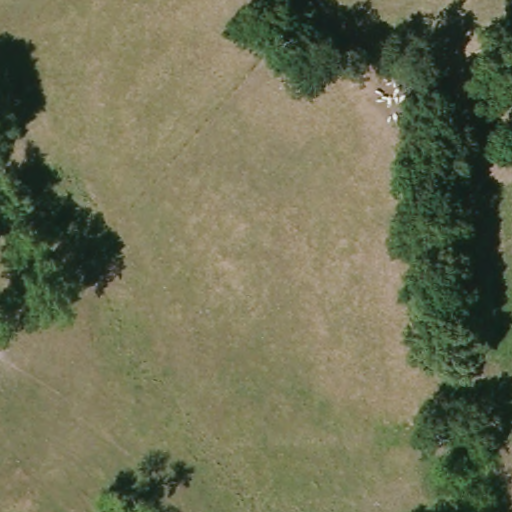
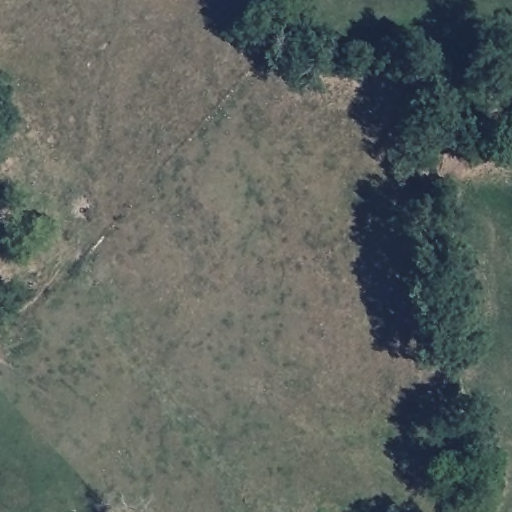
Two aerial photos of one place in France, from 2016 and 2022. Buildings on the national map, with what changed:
[]

